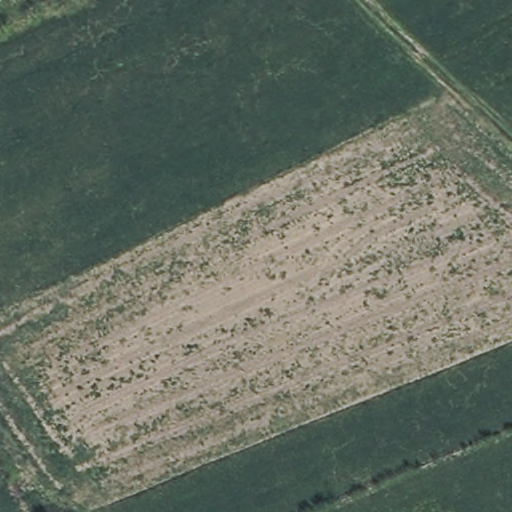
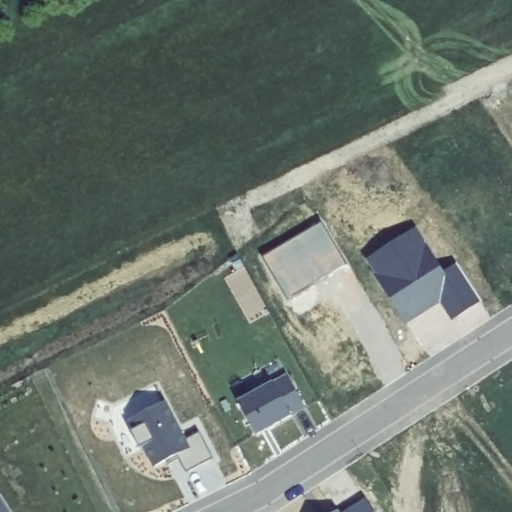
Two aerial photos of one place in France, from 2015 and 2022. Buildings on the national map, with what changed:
new [(322,222),(345,264),(287,300),(262,255),(322,222)]
new [(417,226),(442,270),(456,262),(480,303),(452,319),(442,302),(405,325),(366,258),(417,226)]
new [(288,375),(306,408),(257,435),(239,402),(288,375)]
new [(166,399),(185,440),(199,433),(211,457),(187,471),(179,454),(152,467),(142,445),(137,447),(125,419),(166,399)]
new [(339,508),(340,512),(365,497),(374,512),(332,512),(339,508)]
new [(0,501),(7,512),(0,512),(0,501)]

